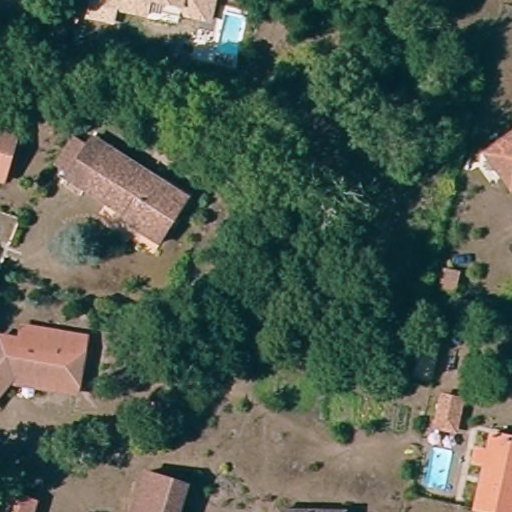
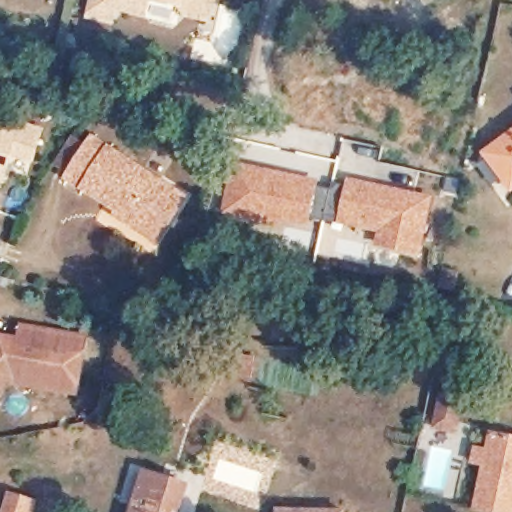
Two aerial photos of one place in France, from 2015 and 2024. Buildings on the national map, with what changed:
unchanged [(120,6),(92,1),(92,0),(215,0),(211,17),(188,14),(182,5),(181,16),(120,6)]
unchanged [(98,108),(87,123),(76,115),(85,100),(98,108)]
unchanged [(0,128),(20,134),(8,173),(6,180),(0,178),(0,128)]
unchanged [(143,235),(109,215),(112,209),(62,179),(65,173),(51,161),(65,139),(81,148),(85,143),(176,200),(160,228),(153,241),(143,235)]
unchanged [(490,156),(512,141),(512,186),(490,156)]
new [(400,247),(402,232),(343,221),(344,216),(328,214),(327,221),(312,217),(311,222),(255,209),(252,217),(229,212),(240,164),(295,176),(293,188),(305,190),(306,184),(335,189),(336,183),(377,191),(377,186),(432,197),(422,252),(400,247)]
unchanged [(0,388),(0,345),(16,347),(20,329),(80,338),(74,382),(72,393),(4,384),(0,388)]
unchanged [(454,405),(447,435),(432,432),(439,402),(454,405)]
unchanged [(480,466),(483,453),(495,456),(498,438),(512,442),(512,512),(482,512),(491,468),(480,466)]
unchanged [(190,490),(184,507),(182,512),(134,512),(146,474),(190,490)]
unchanged [(36,497),(33,512),(7,512),(14,490),(36,497)]

